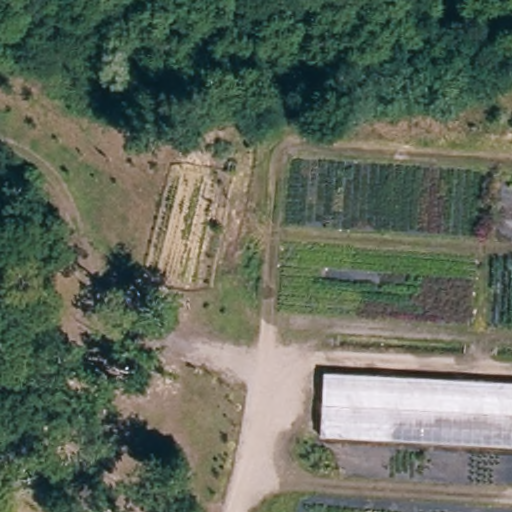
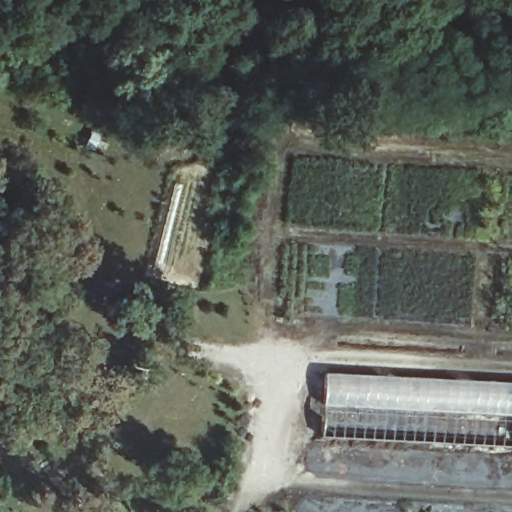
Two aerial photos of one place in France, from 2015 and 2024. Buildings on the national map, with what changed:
unchanged [(321,439),(323,377),(512,384),(512,446),(321,439)]

